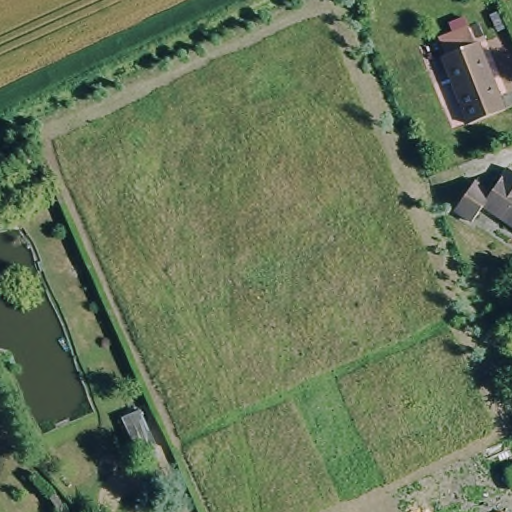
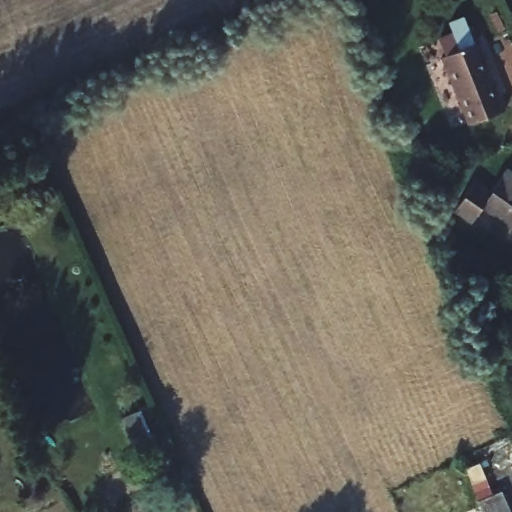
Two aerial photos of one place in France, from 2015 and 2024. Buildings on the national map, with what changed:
unchanged [(507,122),(475,138),(444,71),(452,69),(445,54),(472,42),(477,57),(480,56),(507,122)]
unchanged [(479,211),(468,227),(451,216),(470,187),(487,199),(503,175),(512,181),(512,234),(479,211)]
unchanged [(155,448),(140,454),(127,417),(142,411),(155,448)]

